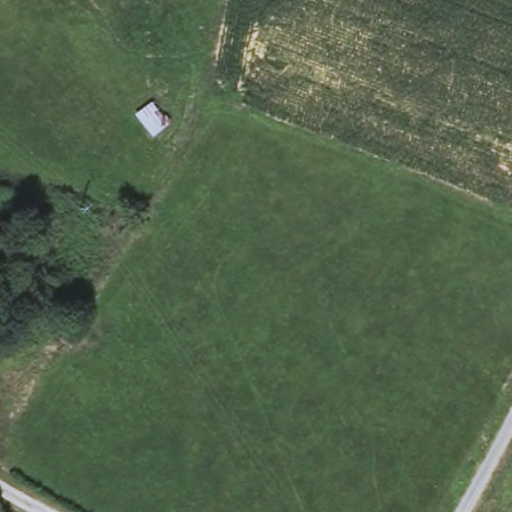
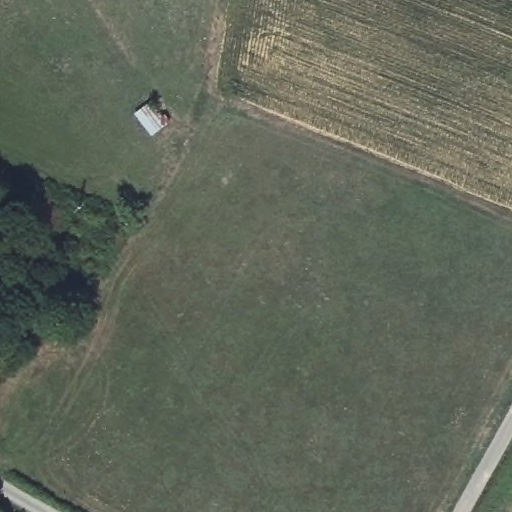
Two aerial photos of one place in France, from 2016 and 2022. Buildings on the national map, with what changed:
unchanged [(152,92),(170,117),(152,132),(133,110),(152,92)]

